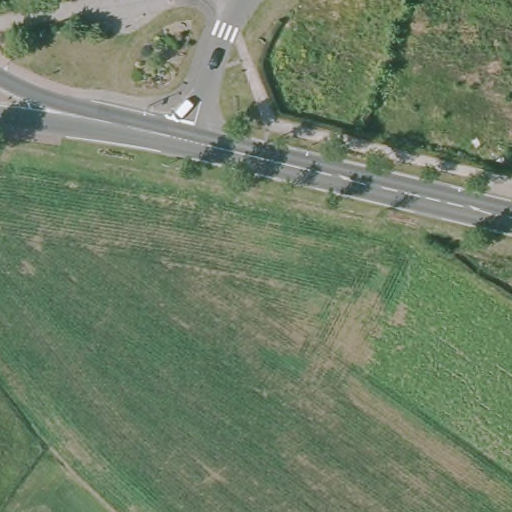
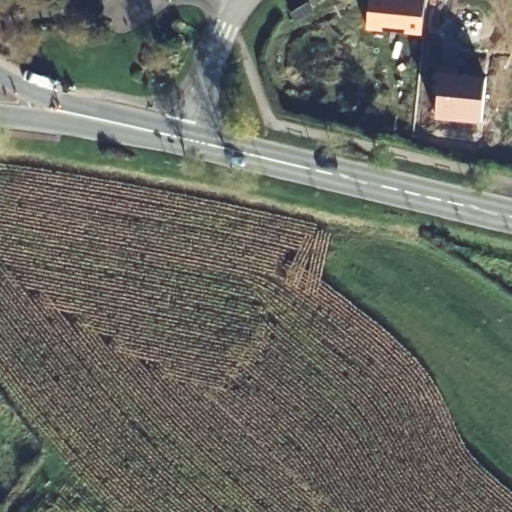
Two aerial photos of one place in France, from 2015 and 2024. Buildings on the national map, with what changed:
new [(424,35),(405,33),(405,30),(385,28),(384,32),(366,30),(370,0),(425,0),(424,35)]
new [(442,71),(487,78),(480,124),(435,117),(442,71)]

